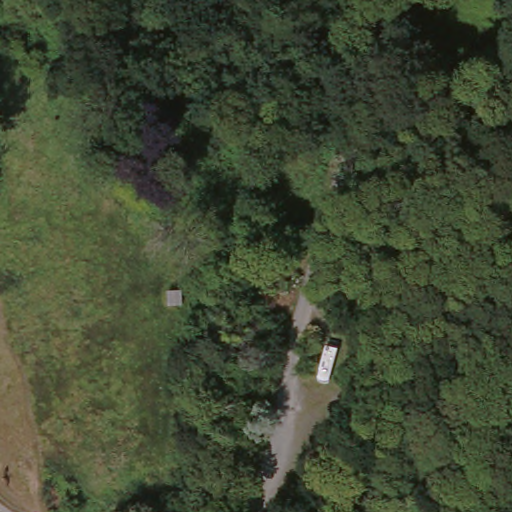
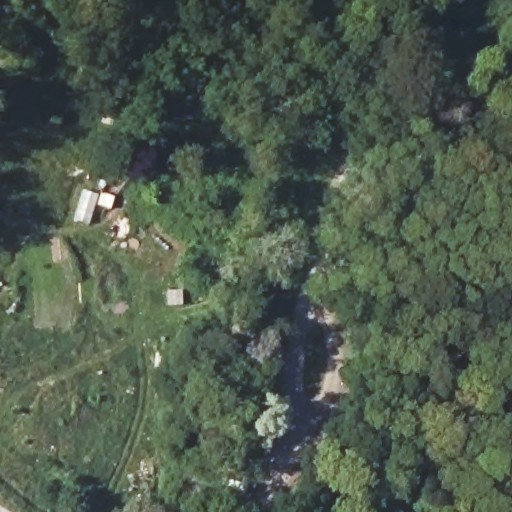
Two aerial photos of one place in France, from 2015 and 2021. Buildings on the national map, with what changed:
unchanged [(323,356),(329,322),(362,330),(354,362),(323,356)]

